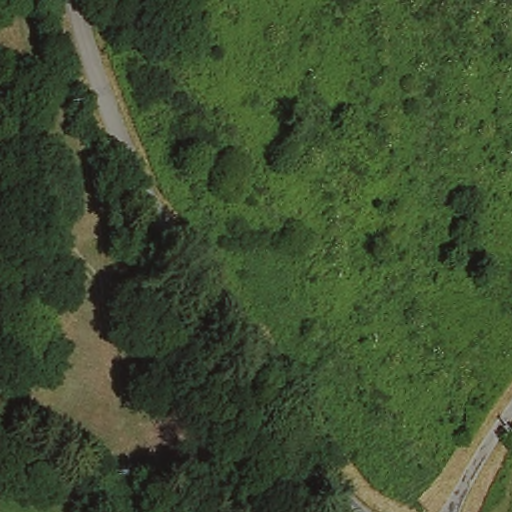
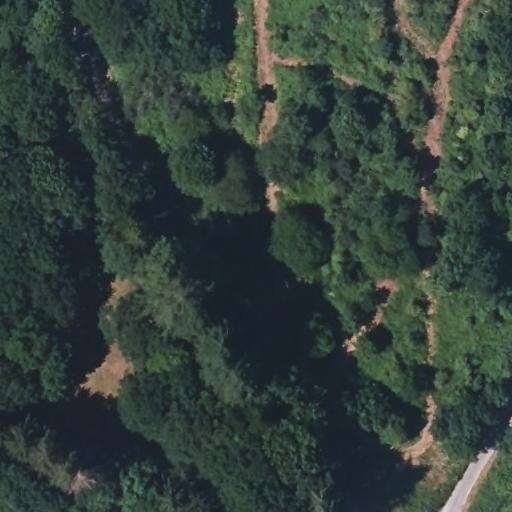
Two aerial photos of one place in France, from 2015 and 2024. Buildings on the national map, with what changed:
[]

